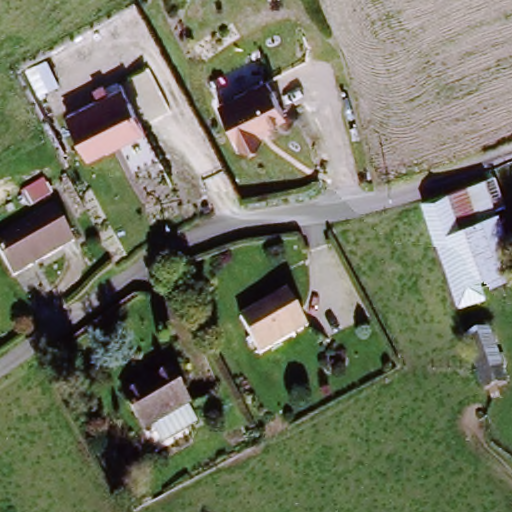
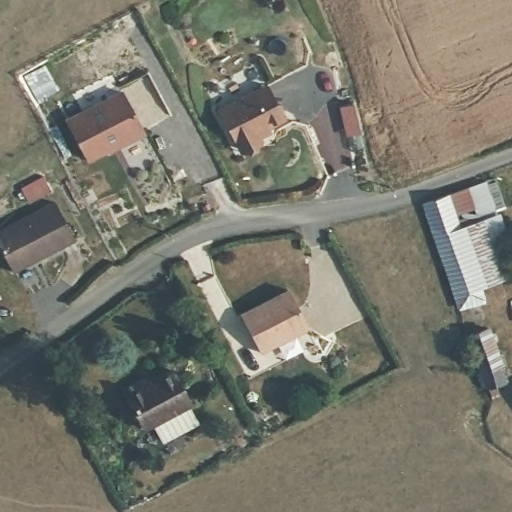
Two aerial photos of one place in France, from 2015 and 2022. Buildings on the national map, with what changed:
unchanged [(239,151),(217,114),(266,84),(285,124),(239,151)]
unchanged [(89,160),(67,118),(124,86),(148,130),(89,160)]
unchanged [(486,295),(487,307),(459,315),(447,285),(420,206),(487,181),(512,249),(512,283),(486,295)]
unchanged [(0,245),(0,236),(59,204),(81,242),(17,277),(0,245)]
unchanged [(309,324),(261,348),(243,308),(291,284),(309,324)]
unchanged [(505,386),(485,392),(476,363),(467,334),(487,328),(505,386)]
unchanged [(130,396),(157,380),(161,386),(180,377),(197,411),(194,412),(201,428),(205,426),(207,432),(196,437),(194,433),(168,448),(158,430),(149,434),(132,400),(130,396)]

